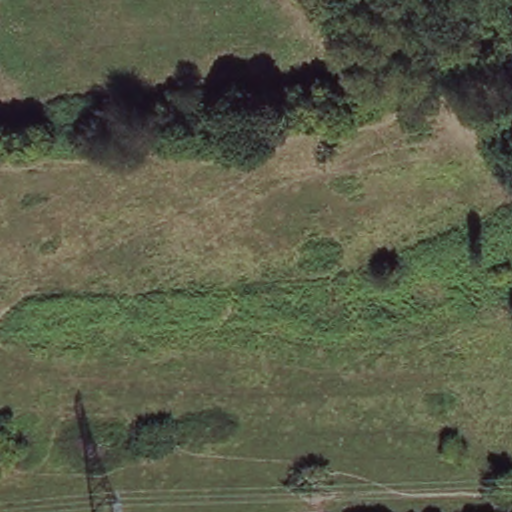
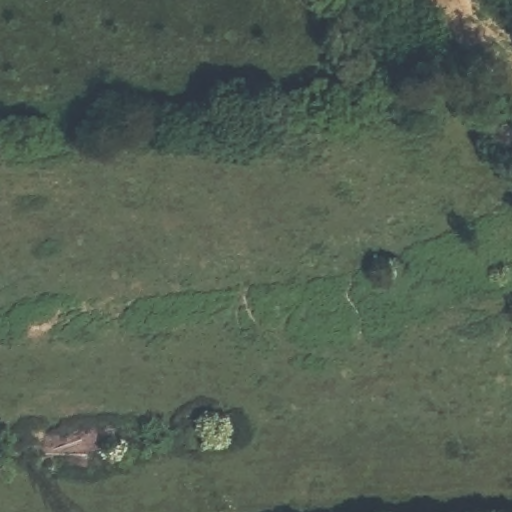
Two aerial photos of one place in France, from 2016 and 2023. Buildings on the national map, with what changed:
[]

